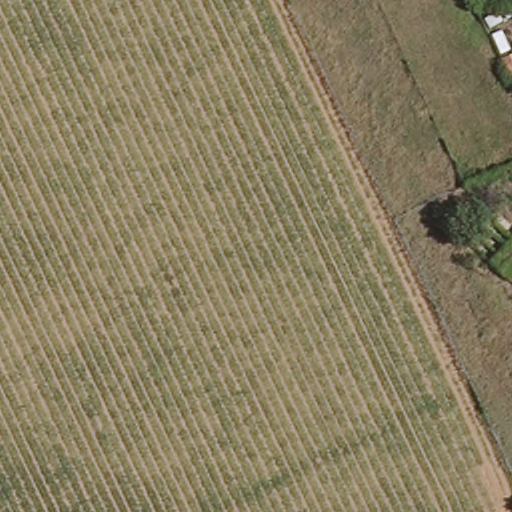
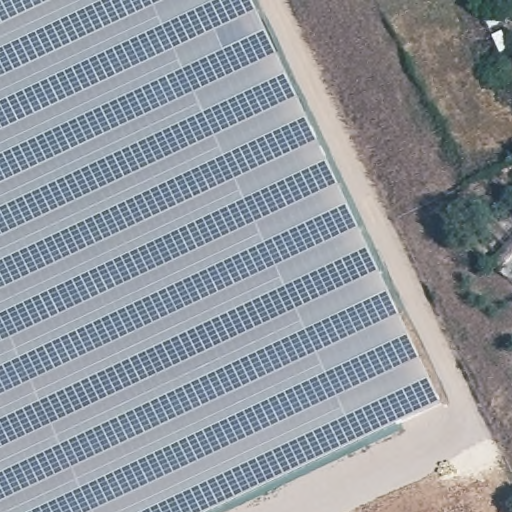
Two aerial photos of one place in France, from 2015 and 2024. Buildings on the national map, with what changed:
new [(252,0),(443,402),(211,512),(0,512),(0,0),(252,0)]
new [(512,240),(512,275),(495,258),(512,240)]

